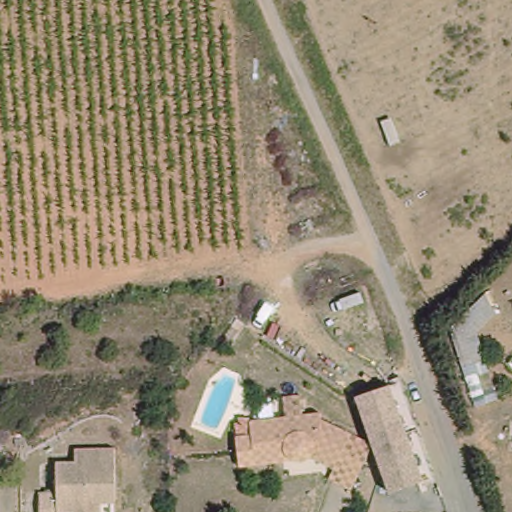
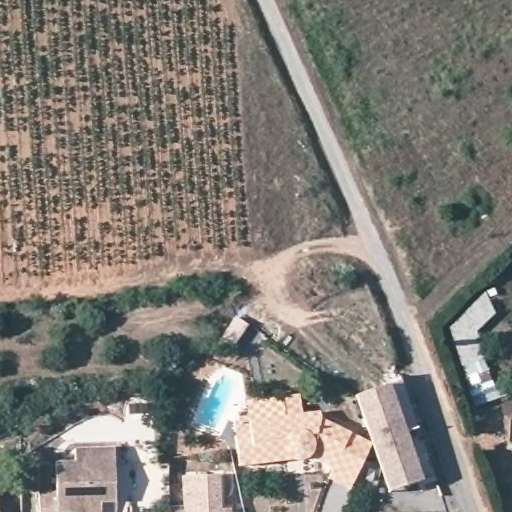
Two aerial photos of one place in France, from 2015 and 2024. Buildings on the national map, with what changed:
unchanged [(450,323),(487,292),(499,316),(482,337),(502,401),(475,406),(450,323)]
unchanged [(392,384),(389,378),(402,374),(439,476),(429,482),(427,479),(392,490),(357,395),(392,384)]
unchanged [(330,471),(305,459),(288,452),(282,459),(254,459),(237,460),(236,446),(236,430),(252,429),(252,415),(286,414),(286,389),(301,389),(301,414),(319,414),(320,422),(370,445),(359,469),(350,488),(327,477),(330,471)]
unchanged [(59,495),(57,463),(79,462),(79,446),(115,445),(116,502),(115,512),(42,512),(42,495),(59,495)]
new [(183,506),(181,478),(220,474),(221,508),(231,507),(231,512),(168,512),(167,506),(183,506)]
unchanged [(0,512),(0,496),(2,512),(0,512)]

